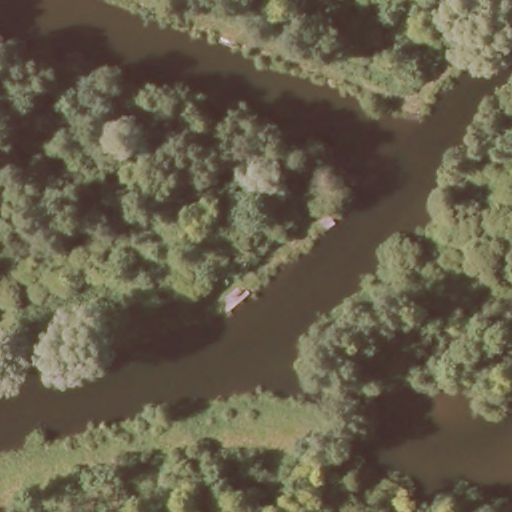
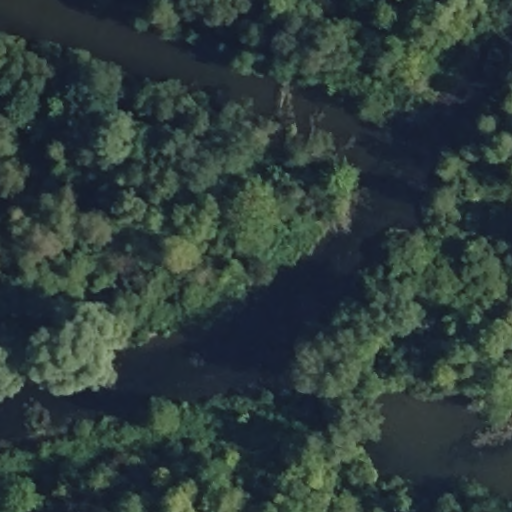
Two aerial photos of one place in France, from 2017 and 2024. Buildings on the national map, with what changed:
unchanged [(475,512),(467,512),(469,508),(475,512)]

